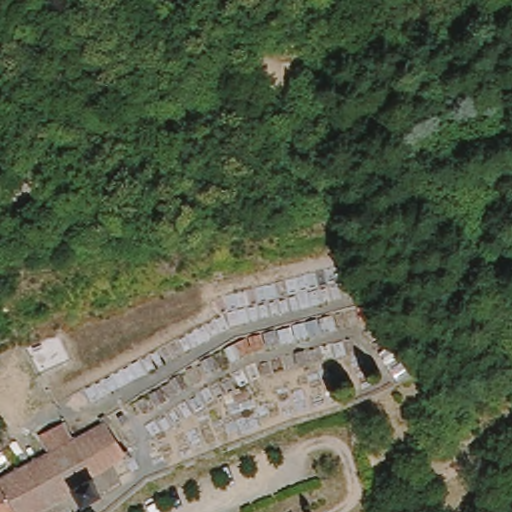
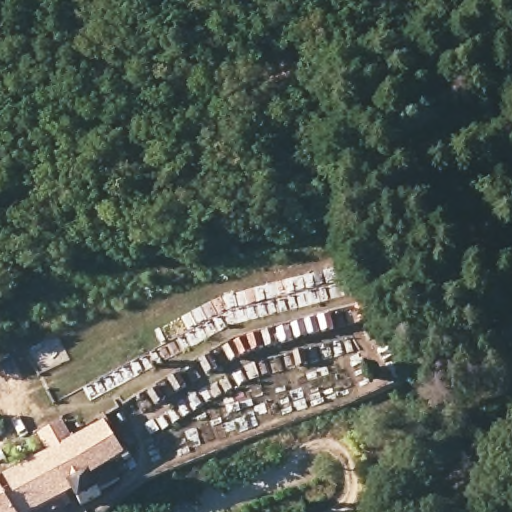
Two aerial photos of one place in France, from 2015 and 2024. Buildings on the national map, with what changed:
unchanged [(67,506),(56,512),(16,512),(0,485),(14,477),(12,471),(16,469),(20,474),(35,465),(32,459),(38,455),(41,459),(51,453),(41,435),(61,423),(70,437),(76,433),(78,437),(101,423),(98,418),(105,414),(111,424),(106,428),(123,458),(126,457),(132,467),(126,470),(125,467),(112,473),(121,490),(83,512),(71,512),(67,506)]
unchanged [(16,512),(0,512),(0,485),(16,512)]

